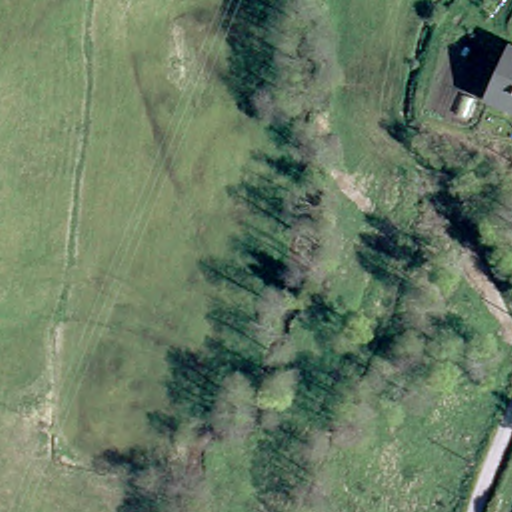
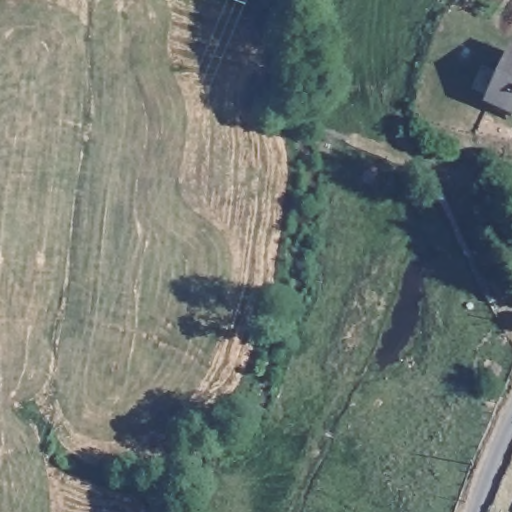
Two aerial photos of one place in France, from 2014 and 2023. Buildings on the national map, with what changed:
unchanged [(512,68),(512,113),(494,104),(512,68)]

